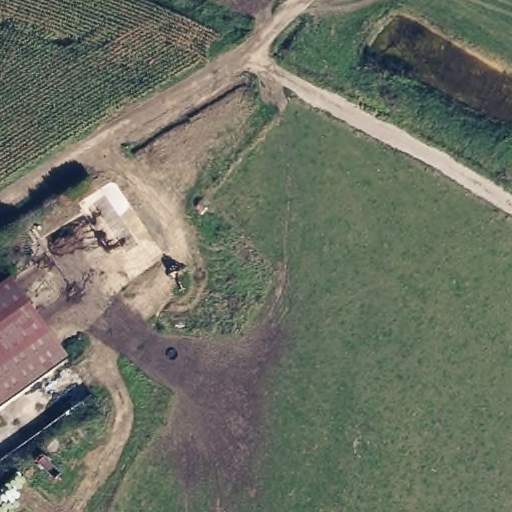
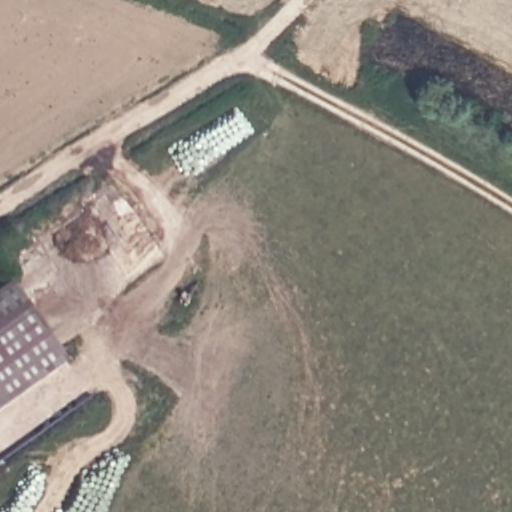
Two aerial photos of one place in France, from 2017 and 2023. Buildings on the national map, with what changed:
unchanged [(58,355),(0,400),(0,286),(4,283),(58,355)]

